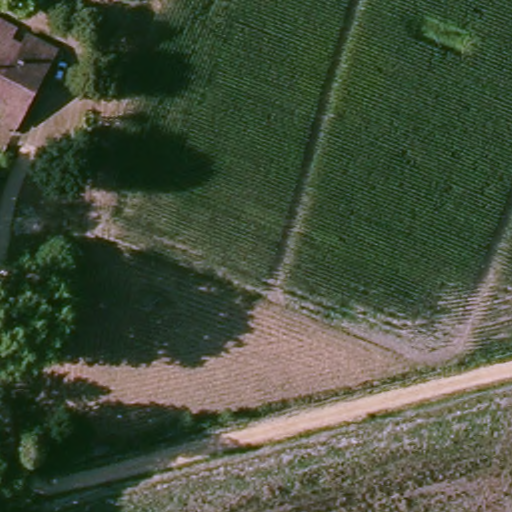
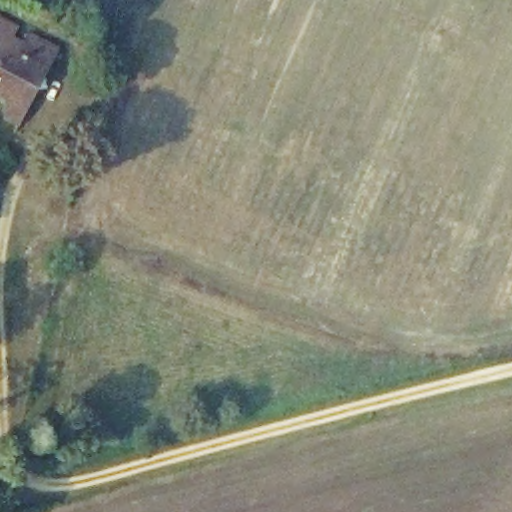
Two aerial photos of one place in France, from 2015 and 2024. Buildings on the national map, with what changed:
unchanged [(16,26),(10,40),(20,46),(29,33),(59,49),(50,67),(28,115),(22,127),(1,116),(9,101),(0,97),(0,17),(16,26)]
unchanged [(5,162),(0,174),(0,159),(5,162)]

